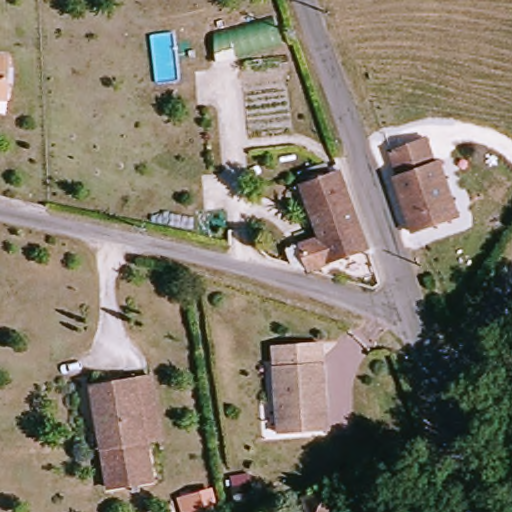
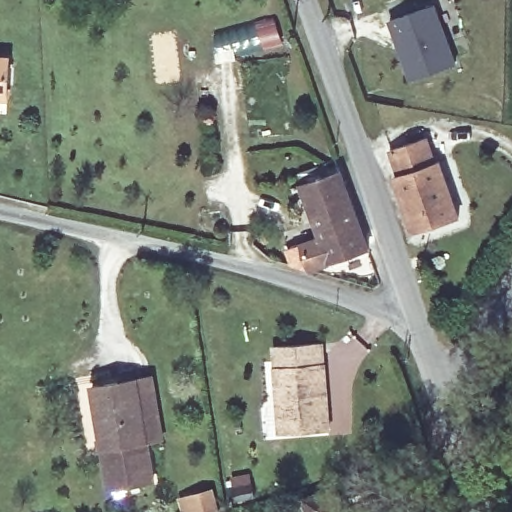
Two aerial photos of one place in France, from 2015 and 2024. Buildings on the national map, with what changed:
new [(457,64),(412,80),(400,46),(396,35),(392,21),(437,6),(457,64)]
unchanged [(0,100),(0,63),(14,63),(11,100),(0,100)]
unchanged [(390,176),(395,174),(388,150),(424,139),(431,164),(436,162),(455,219),(410,233),(390,176)]
unchanged [(301,244),(324,235),(305,185),(343,173),(370,252),(354,257),(311,272),(298,267),(290,247),(301,244)]
unchanged [(318,431),(276,433),(272,366),(271,349),(319,346),(320,363),(321,381),(325,430),(318,431)]
unchanged [(109,489),(91,387),(136,380),(152,377),(162,437),(147,440),(153,481),(109,489)]
unchanged [(244,484),(254,483),(255,494),(246,495),(244,484)]
unchanged [(196,489),(217,484),(221,504),(202,509),(196,489)]
unchanged [(338,494),(344,512),(316,512),(313,500),(338,494)]
unchanged [(344,512),(358,509),(380,503),(382,512),(344,512)]

